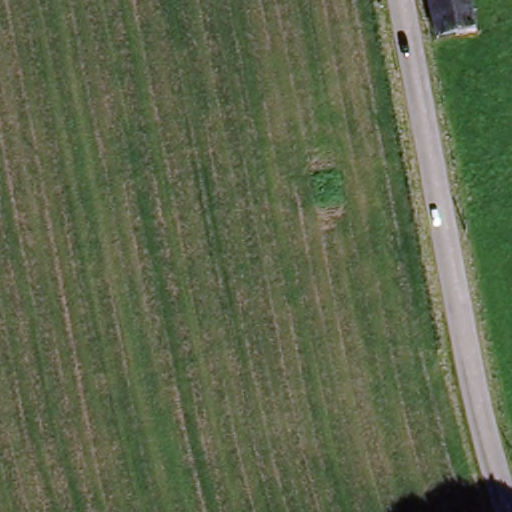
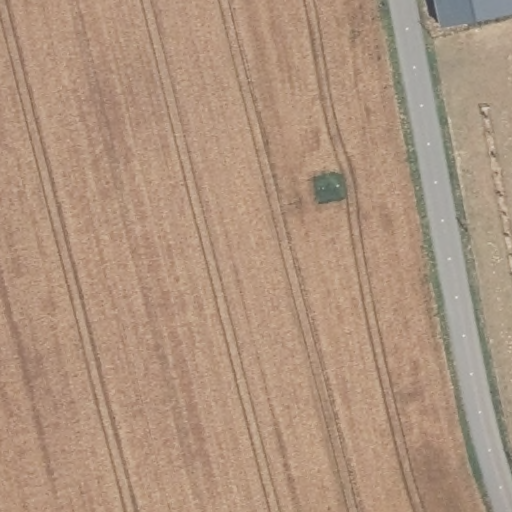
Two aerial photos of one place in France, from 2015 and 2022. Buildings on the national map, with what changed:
demolished [(437,40),(429,0),(467,0),(474,32),(437,40)]
new [(433,0),(512,0),(512,12),(440,29),(433,0)]

